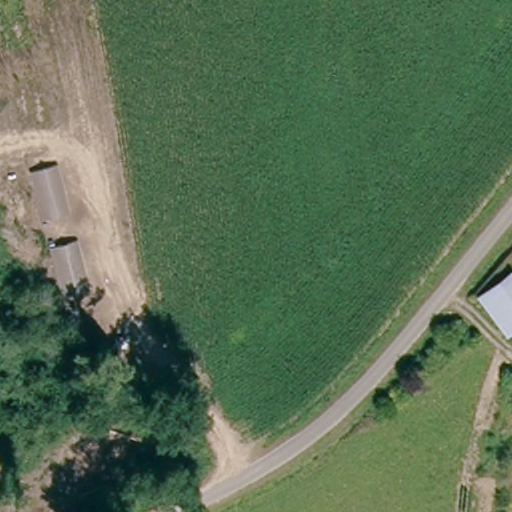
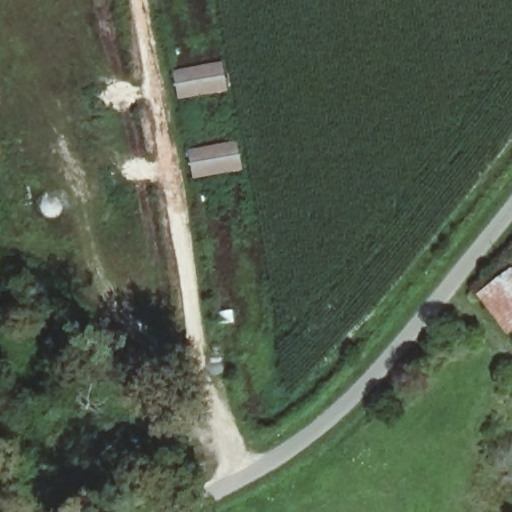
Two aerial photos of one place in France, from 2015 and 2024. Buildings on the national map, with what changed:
new [(178,100),(173,70),(222,61),(228,91),(178,100)]
new [(193,179),(187,149),(237,141),(242,171),(193,179)]
unchanged [(512,280),(512,331),(478,307),(504,274),(512,280)]

